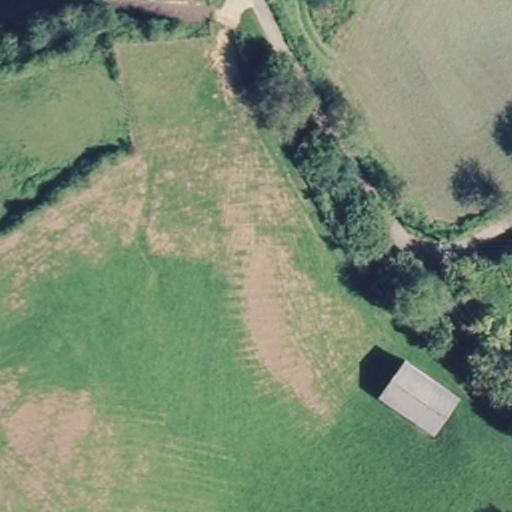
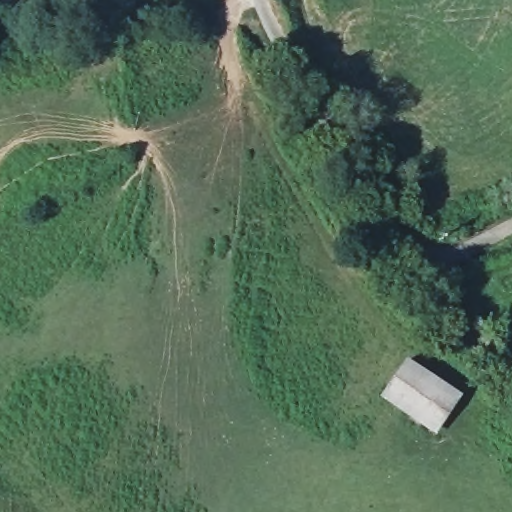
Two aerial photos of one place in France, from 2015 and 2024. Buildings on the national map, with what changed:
unchanged [(460,389),(441,431),(385,407),(403,364),(460,389)]

